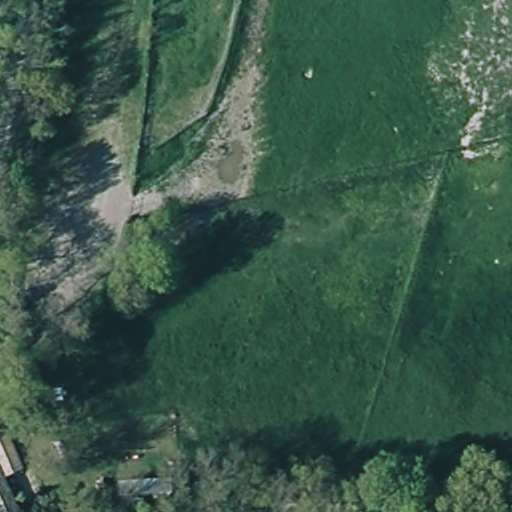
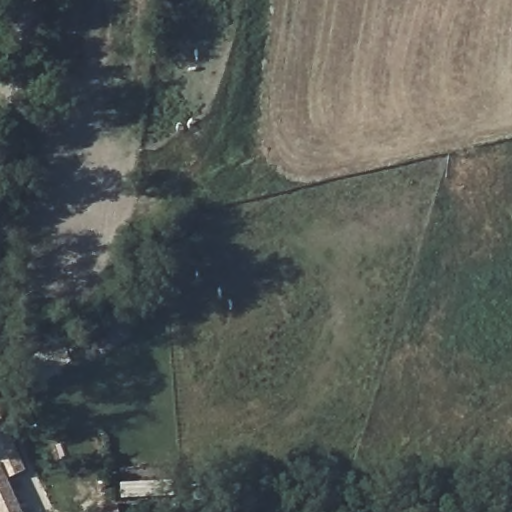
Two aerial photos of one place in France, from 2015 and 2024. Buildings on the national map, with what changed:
unchanged [(0,463),(0,417),(5,414),(29,467),(8,479),(0,463)]
unchanged [(8,479),(24,512),(0,512),(0,483),(8,479)]

